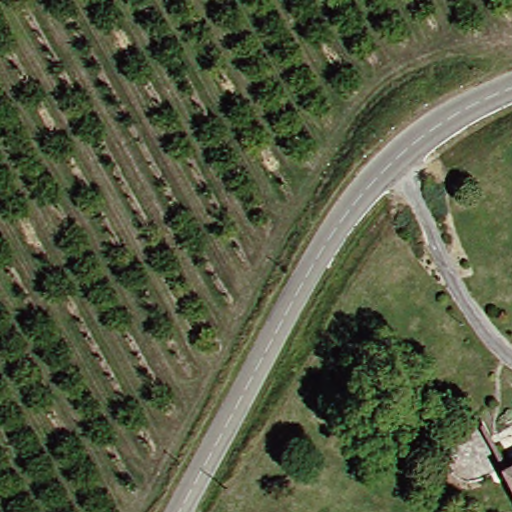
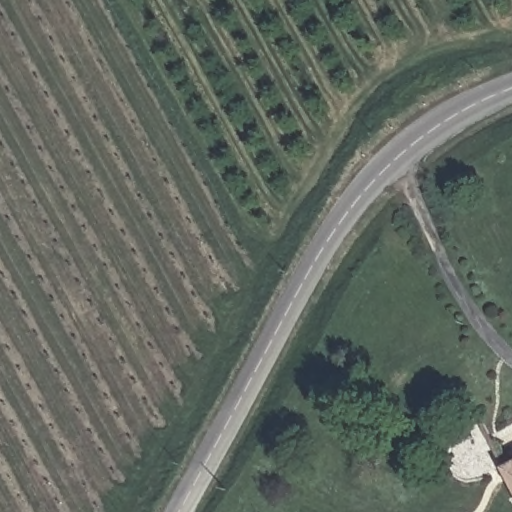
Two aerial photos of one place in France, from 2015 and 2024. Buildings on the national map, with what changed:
unchanged [(512,463),(512,478),(506,467),(512,463)]

